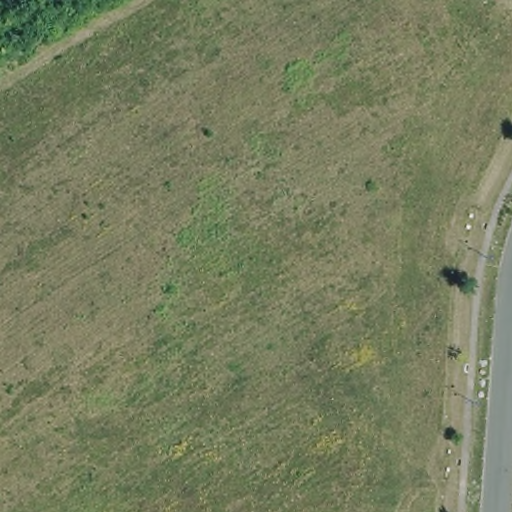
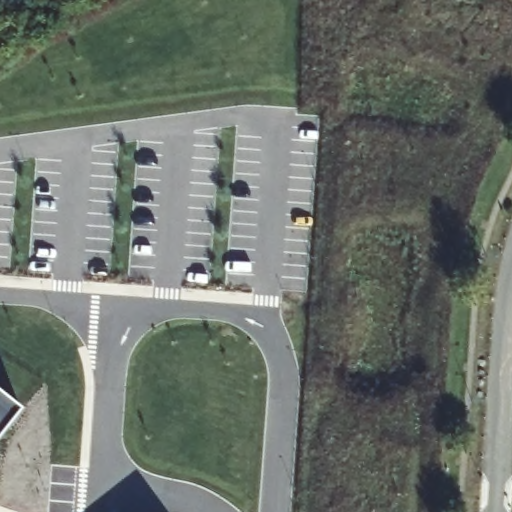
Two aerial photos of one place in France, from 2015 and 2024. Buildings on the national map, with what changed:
new [(0,437),(0,394),(21,411),(0,437)]

